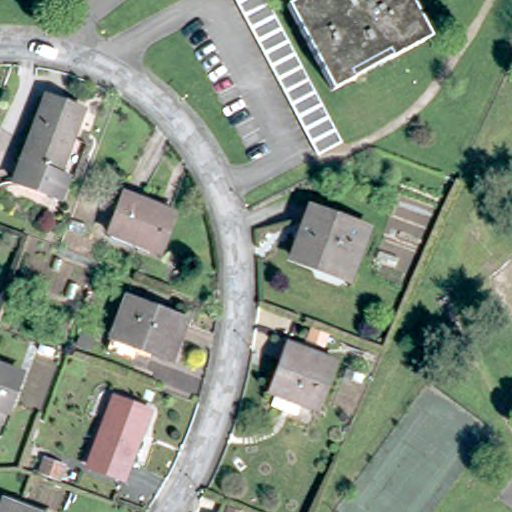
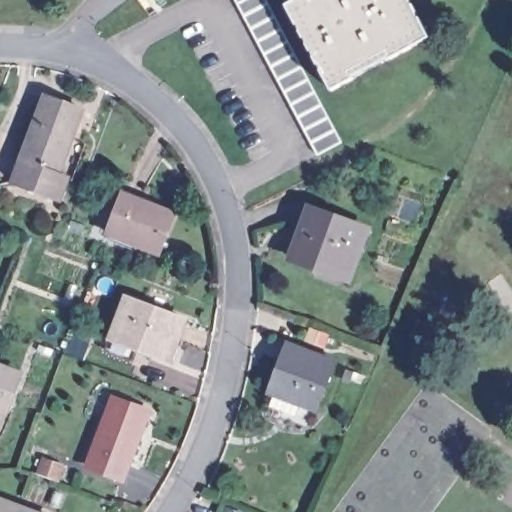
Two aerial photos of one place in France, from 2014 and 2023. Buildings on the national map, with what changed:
unchanged [(258,38),(251,25),(244,12),(238,0),(269,0),(275,13),(281,25),(288,38),(294,50),(301,62),(307,75),(314,87),(321,101),(327,113),(333,125),(340,138),(315,151),(309,138),(302,125),(296,113),(289,100),(283,87),(276,74),(270,63),(264,50),(258,38)]
unchanged [(432,34),(391,56),(388,50),(351,69),(353,74),(331,86),(287,1),(289,0),(414,0),(432,34)]
unchanged [(48,91),(83,104),(61,168),(71,171),(64,194),(18,178),(48,91)]
unchanged [(123,190),(173,210),(158,249),(106,231),(123,190)]
unchanged [(313,212),(371,231),(354,276),(317,263),(315,269),(295,262),(313,212)]
unchanged [(128,291),(187,313),(173,352),(140,340),(136,352),(109,343),(128,291)]
unchanged [(305,344),(309,335),(324,341),(321,350),(305,344)]
unchanged [(270,391),(269,390),(287,342),(335,359),(316,407),(294,399),(289,413),(265,404),(270,391)]
unchanged [(4,403),(0,401),(0,357),(18,364),(4,403)]
unchanged [(112,398),(146,410),(120,479),(88,467),(112,398)]
unchanged [(31,480),(35,467),(68,478),(63,492),(31,480)]
unchanged [(41,512),(0,512),(0,500),(1,498),(41,512)]
unchanged [(237,511),(237,512),(221,512),(223,506),(237,511)]

